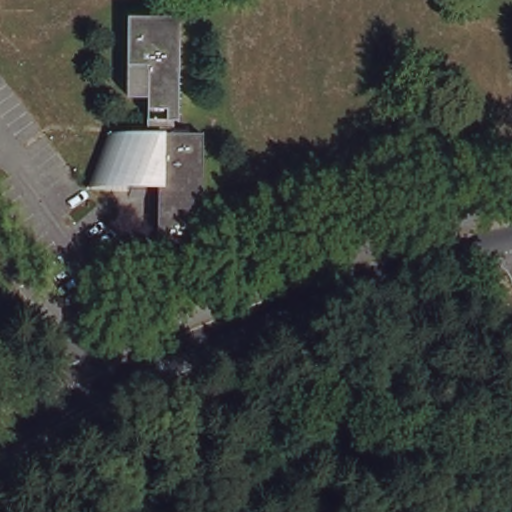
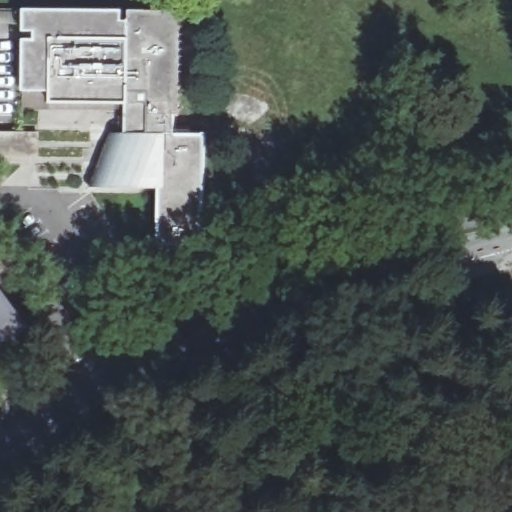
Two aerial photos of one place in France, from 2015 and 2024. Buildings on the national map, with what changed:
unchanged [(197,244),(187,244),(187,256),(164,256),(164,244),(154,244),(155,192),(155,182),(90,181),(110,135),(147,135),(147,91),(126,91),(127,9),(165,10),(178,10),(178,114),(173,114),(173,125),(185,125),(185,133),(200,133),(197,244)]
new [(125,103),(51,102),(51,90),(23,89),(23,40),(35,40),(35,31),(23,31),(23,10),(121,11),(120,22),(127,23),(126,91),(147,91),(147,135),(126,135),(125,103)]
new [(40,159),(0,160),(0,131),(40,131),(40,159)]
new [(0,343),(0,284),(31,327),(0,343)]

